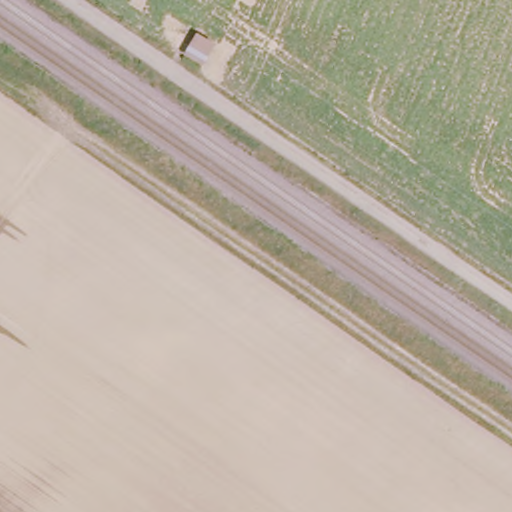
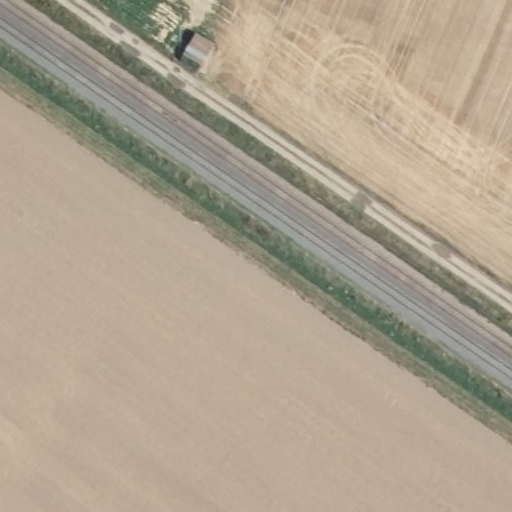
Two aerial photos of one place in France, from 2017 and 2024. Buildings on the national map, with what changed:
unchanged [(212,49),(198,68),(180,56),(192,35),(212,49)]

